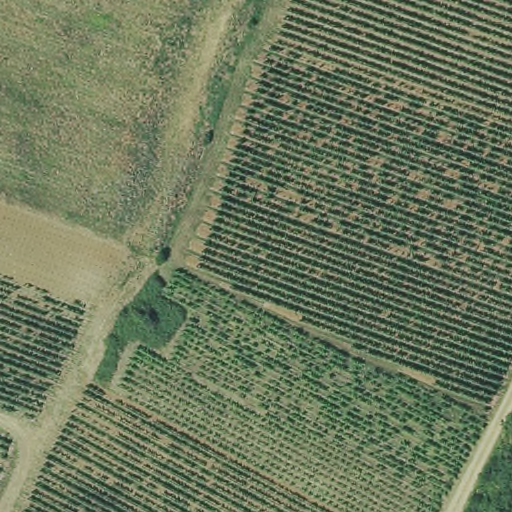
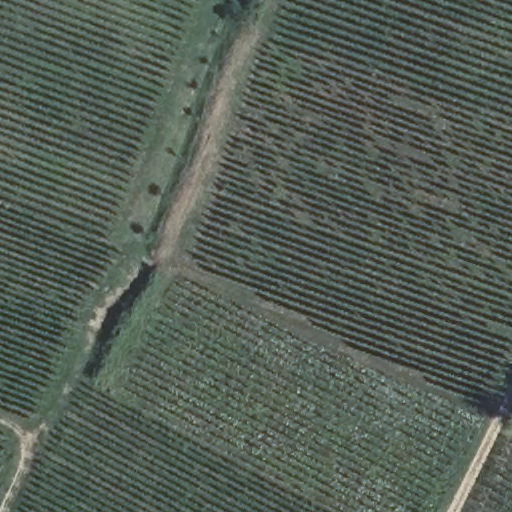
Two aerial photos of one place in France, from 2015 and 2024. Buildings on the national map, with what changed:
[]

